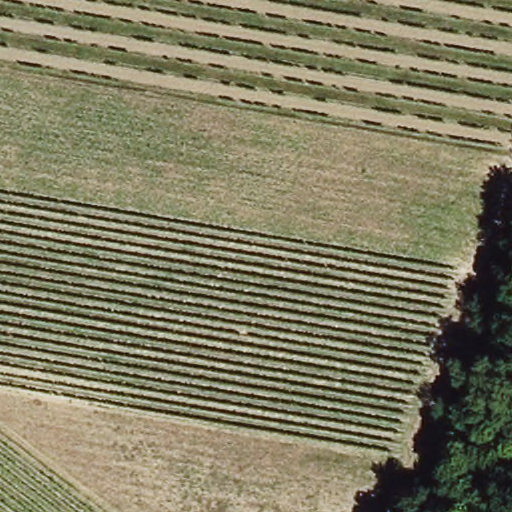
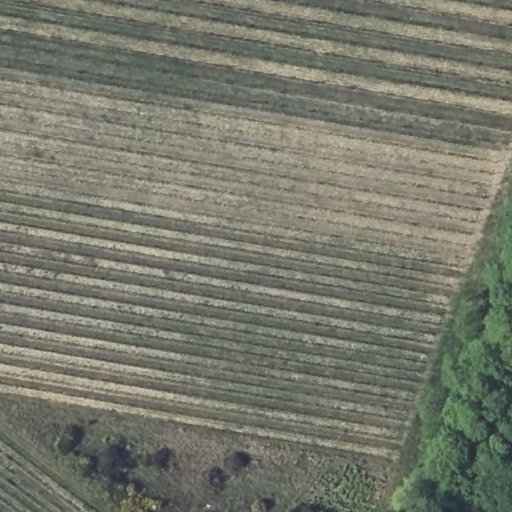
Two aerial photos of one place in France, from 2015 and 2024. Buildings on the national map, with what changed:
[]

